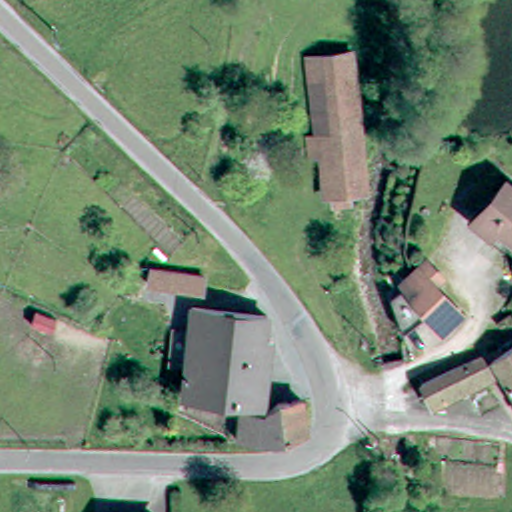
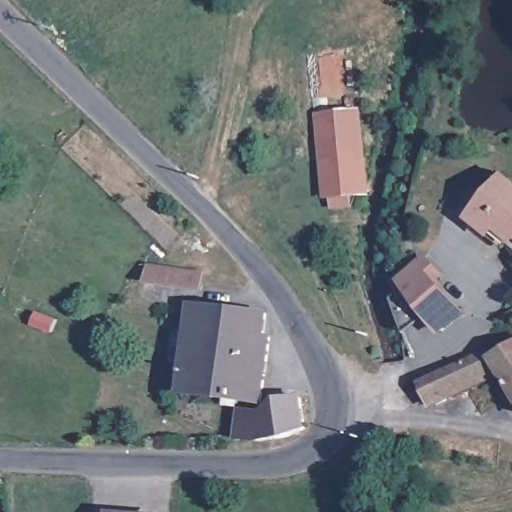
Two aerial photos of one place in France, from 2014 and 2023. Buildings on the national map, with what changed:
unchanged [(302,137),(316,135),(304,56),(327,52),(347,49),(349,54),(350,55),(370,189),(325,196),(319,156),(305,158),(302,137)]
unchanged [(492,175),(500,182),(512,191),(512,238),(502,230),(494,241),(490,238),(462,215),(460,213),(463,210),(492,175)]
unchanged [(389,276),(420,252),(433,271),(425,277),(449,308),(426,326),(415,310),(391,327),(380,302),(377,293),(393,282),(389,276)]
unchanged [(207,275),(205,293),(153,285),(155,272),(157,267),(160,267),(207,275)]
unchanged [(254,306),(253,326),(261,327),(252,395),(228,391),(227,403),(216,401),(217,390),(172,382),(180,317),(182,297),(254,306)]
unchanged [(425,404),(415,380),(428,373),(437,370),(485,347),(496,343),(502,352),(512,346),(512,396),(499,373),(425,404)]
unchanged [(281,425),(257,431),(240,431),(235,428),(235,402),(261,401),(266,396),(271,391),(292,386),(297,417),(281,425)]
unchanged [(512,404),(512,408),(510,405),(512,404)]
unchanged [(365,478),(382,474),(389,503),(372,506),(365,478)]

